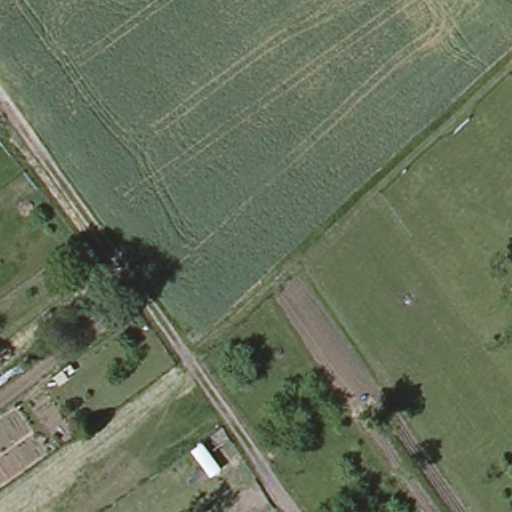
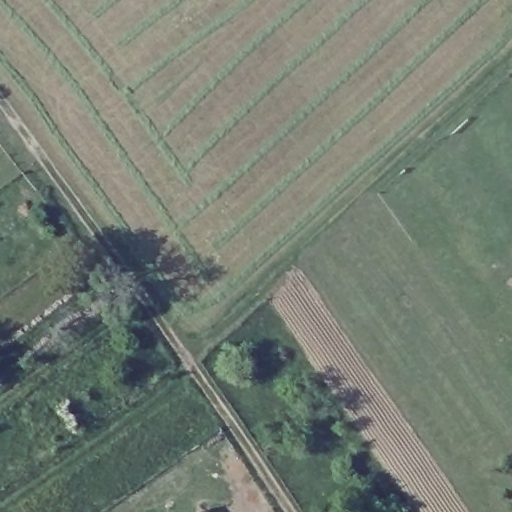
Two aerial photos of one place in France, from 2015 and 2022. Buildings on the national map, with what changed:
unchanged [(417,333),(428,350),(385,376),(375,359),(417,333)]

